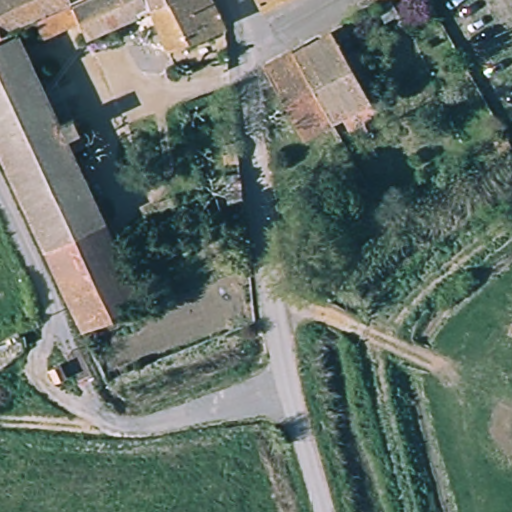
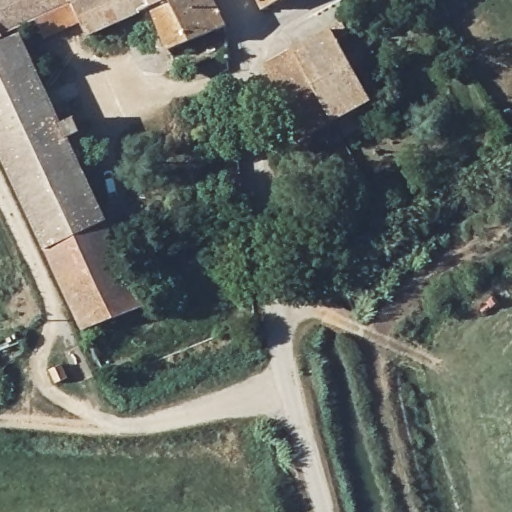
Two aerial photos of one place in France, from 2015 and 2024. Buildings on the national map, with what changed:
unchanged [(40,12),(36,14),(15,25),(1,31),(0,32),(0,0),(66,0),(40,12)]
unchanged [(66,0),(145,0),(86,28),(79,12),(48,27),(40,12),(66,0)]
unchanged [(223,19),(168,41),(148,0),(214,0),(223,19)]
unchanged [(267,2),(266,0),(271,0),(267,2)]
unchanged [(386,22),(376,6),(379,5),(375,0),(393,0),(400,13),(386,22)]
unchanged [(330,121),(301,136),(263,68),(327,31),(340,24),(354,51),(352,52),(359,65),(349,71),(366,100),(330,121)]
unchanged [(73,114),(74,113),(80,128),(76,129),(66,135),(71,146),(94,193),(105,216),(45,244),(0,150),(0,39),(18,30),(59,120),(73,114)]
unchanged [(509,143),(502,131),(512,126),(512,141),(509,143)]
unchanged [(243,150),(231,152),(230,134),(241,132),(243,150)]
unchanged [(248,192),(233,195),(230,165),(245,163),(248,192)]
unchanged [(115,238),(120,250),(142,297),(88,323),(78,302),(45,244),(105,216),(115,238)]

